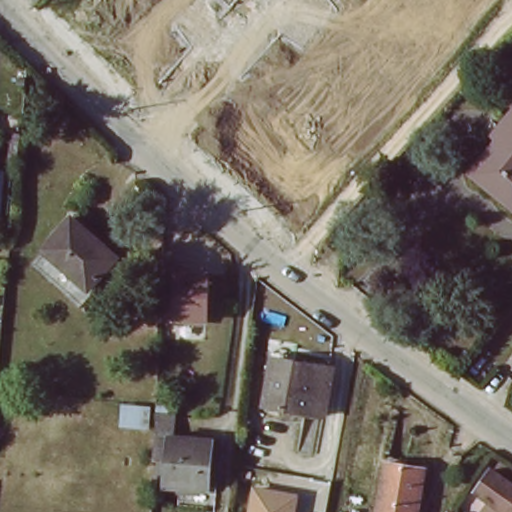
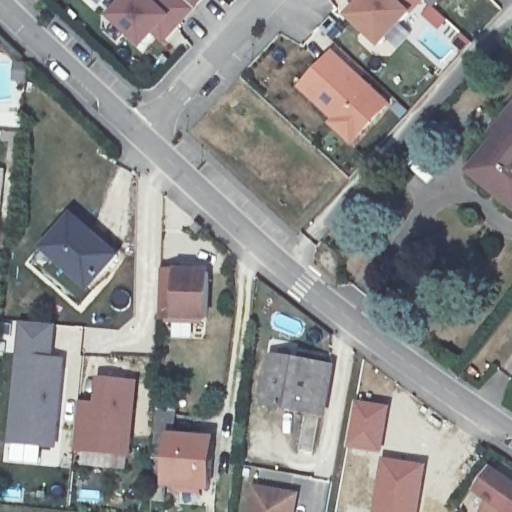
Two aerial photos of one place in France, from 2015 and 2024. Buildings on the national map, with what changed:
new [(114,0),(188,0),(153,37),(143,29),(131,42),(103,11),(114,0)]
new [(351,0),(350,0),(408,0),(369,41),(339,14),(351,0)]
new [(420,4),(416,0),(423,0),(420,4)]
unchanged [(328,44),(355,69),(348,77),(375,101),(342,139),(321,121),(325,116),(290,84),(328,44)]
demolished [(29,131),(13,130),(0,129),(0,112),(31,115),(29,131)]
unchanged [(501,145),(494,139),(512,116),(512,207),(475,176),(501,145)]
unchanged [(57,242),(83,212),(125,251),(98,281),(57,242)]
unchanged [(83,297),(42,260),(57,242),(98,281),(83,297)]
unchanged [(214,270),(212,323),(177,324),(161,320),(162,271),(177,270),(214,270)]
new [(56,326),(53,359),(68,360),(57,450),(7,445),(21,322),(56,326)]
unchanged [(290,372),(291,363),(332,365),(328,411),(267,408),(270,372),(290,372)]
new [(95,404),(97,378),(140,381),(132,458),(74,453),(80,402),(95,404)]
new [(357,400),(390,405),(381,454),(348,448),(357,400)]
demolished [(473,462),(455,447),(466,432),(485,445),(473,462)]
unchanged [(212,438),(210,488),(162,486),(165,436),(212,438)]
unchanged [(422,512),(375,512),(383,458),(430,465),(422,512)]
unchanged [(486,469),(512,488),(512,512),(504,512),(471,490),(486,469)]
unchanged [(297,512),(250,512),(255,485),(300,492),(297,512)]

